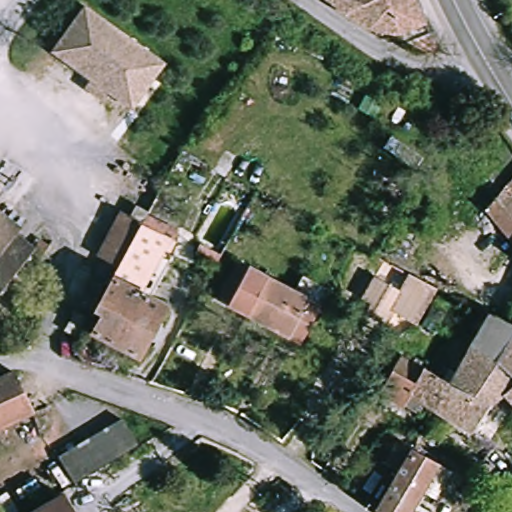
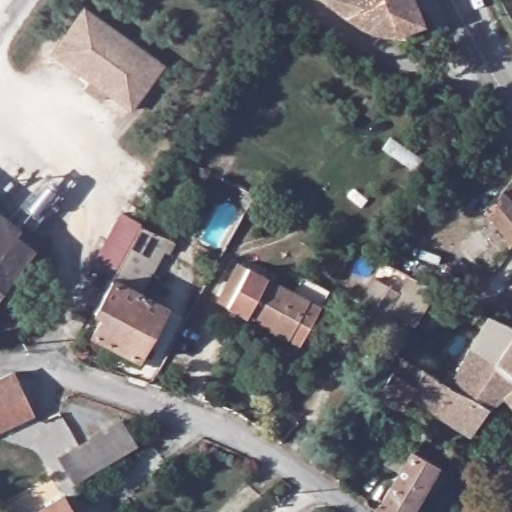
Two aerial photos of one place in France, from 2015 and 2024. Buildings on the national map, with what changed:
unchanged [(435,46),(419,57),(401,50),(395,38),(376,37),(360,30),(354,25),(328,7),(319,0),(410,0),(421,27),(435,46)]
unchanged [(163,64),(128,109),(49,48),(84,2),(163,64)]
unchanged [(512,174),(512,240),(486,210),(512,174)]
unchanged [(134,222),(141,210),(152,216),(120,273),(102,263),(127,218),(134,222)]
unchanged [(18,229),(14,235),(32,250),(0,288),(0,214),(18,229)]
unchanged [(180,246),(177,252),(172,250),(145,299),(117,285),(147,229),(180,246)]
unchanged [(213,270),(197,260),(202,252),(218,261),(213,270)]
unchanged [(271,281),(251,320),(223,303),(245,265),(272,281),(271,281)]
unchanged [(441,282),(419,318),(397,305),(390,318),(369,307),(375,297),(366,291),(379,269),(404,283),(413,267),(441,282)]
unchanged [(271,281),(326,314),(303,350),(251,320),(271,281)]
unchanged [(117,285),(145,299),(170,312),(142,361),(97,338),(107,319),(99,315),(117,285)]
unchanged [(104,298),(98,310),(88,305),(95,293),(104,298)]
unchanged [(467,430),(432,410),(450,382),(487,313),(512,326),(512,376),(501,393),(467,430)]
unchanged [(83,322),(73,341),(62,335),(72,315),(83,322)]
unchanged [(432,410),(407,395),(400,405),(376,389),(401,353),(433,371),(450,382),(432,410)]
unchanged [(512,376),(512,405),(501,393),(512,376)]
unchanged [(15,377),(18,378),(40,417),(0,436),(0,385),(15,377)]
unchanged [(60,458),(80,446),(124,419),(138,444),(96,470),(75,483),(60,458)]
unchanged [(378,510),(401,472),(385,462),(400,440),(442,464),(413,512),(381,512),(378,510)]
unchanged [(70,492),(82,512),(38,512),(70,492)]

